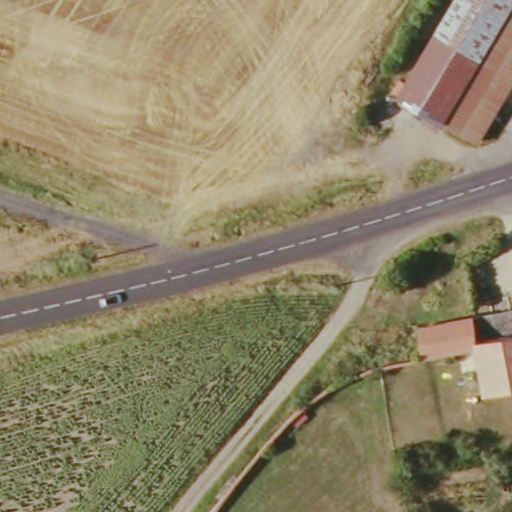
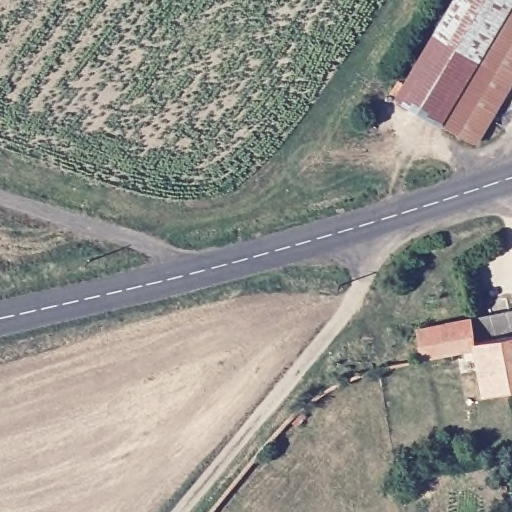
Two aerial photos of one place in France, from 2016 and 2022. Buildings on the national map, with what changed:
unchanged [(512,0),(512,93),(480,145),(402,100),(463,0),(512,0)]
unchanged [(425,330),(512,315),(512,388),(489,390),(482,345),(430,355),(425,330)]

